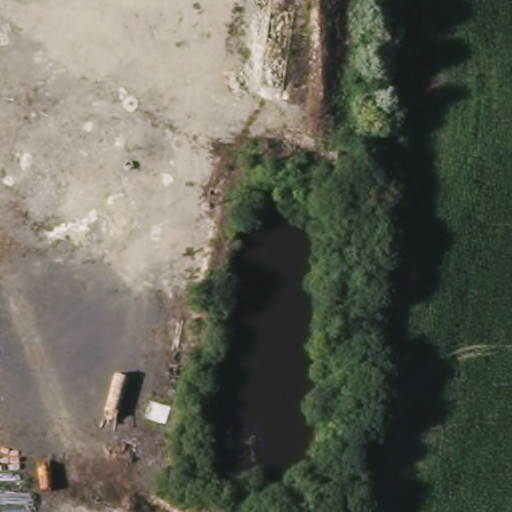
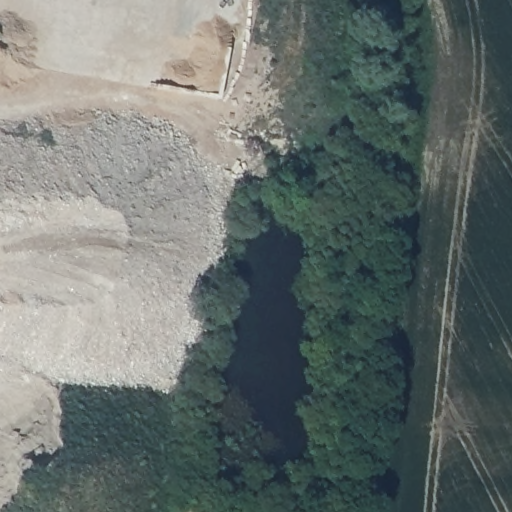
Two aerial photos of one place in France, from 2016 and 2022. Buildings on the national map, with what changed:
unchanged [(331,184),(323,184),(323,174),(331,174),(331,184)]

